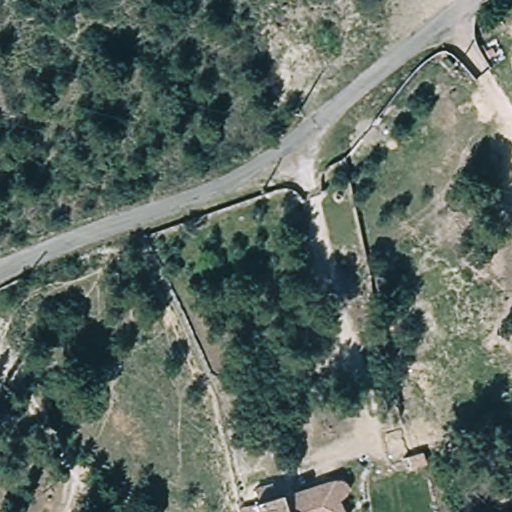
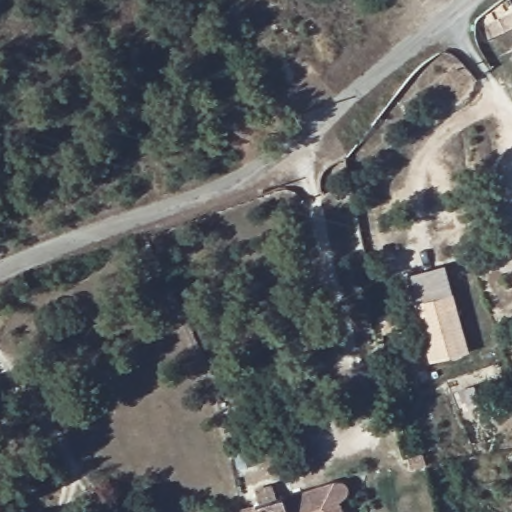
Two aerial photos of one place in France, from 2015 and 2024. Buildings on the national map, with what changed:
new [(432,268),(440,297),(453,293),(469,352),(430,363),(414,305),(408,275),(432,268)]
unchanged [(397,491),(393,476),(389,464),(390,464),(403,461),(406,472),(410,487),(397,491)]
unchanged [(349,486),(350,492),(341,498),(345,512),(242,512),(241,505),(256,502),(251,487),(273,482),(276,494),(333,478),(345,480),(349,486)]

